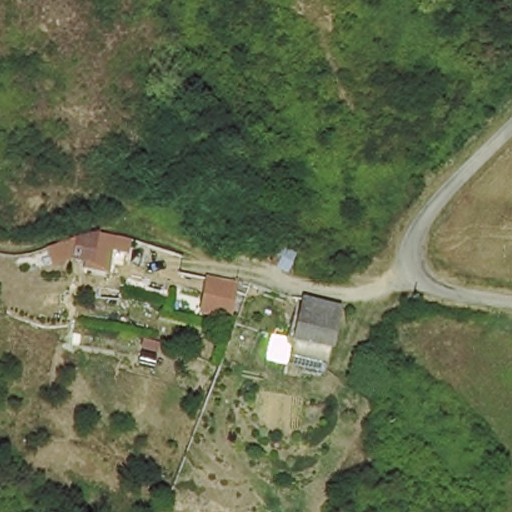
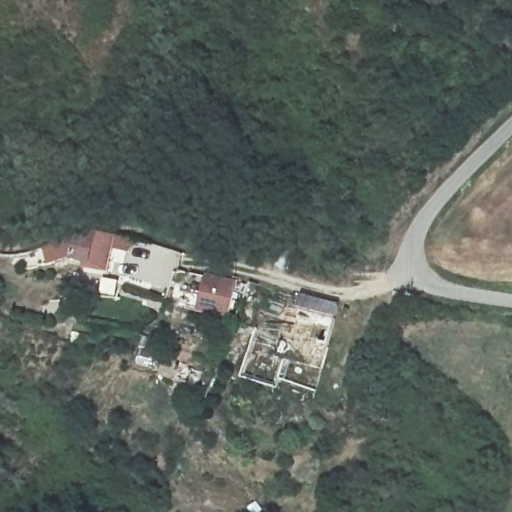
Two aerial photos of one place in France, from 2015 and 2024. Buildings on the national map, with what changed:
unchanged [(99,230),(131,236),(128,253),(112,250),(107,271),(73,263),(53,270),(43,248),(74,240),(99,230)]
unchanged [(266,266),(274,246),(301,252),(291,270),(266,266)]
unchanged [(203,277),(236,283),(230,320),(195,313),(203,277)]
unchanged [(298,344),(299,335),(289,333),(295,312),(303,314),(307,293),(342,305),(335,357),(298,344)]

